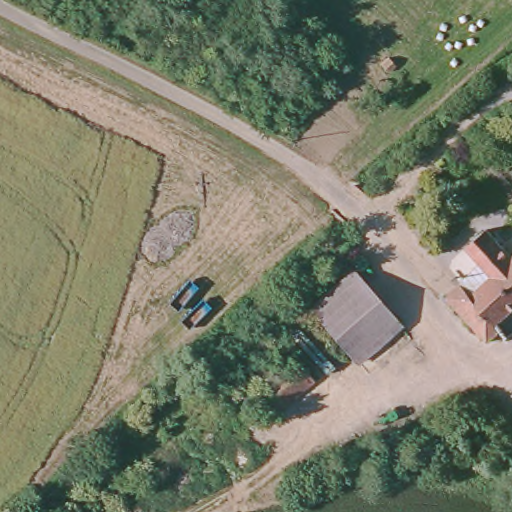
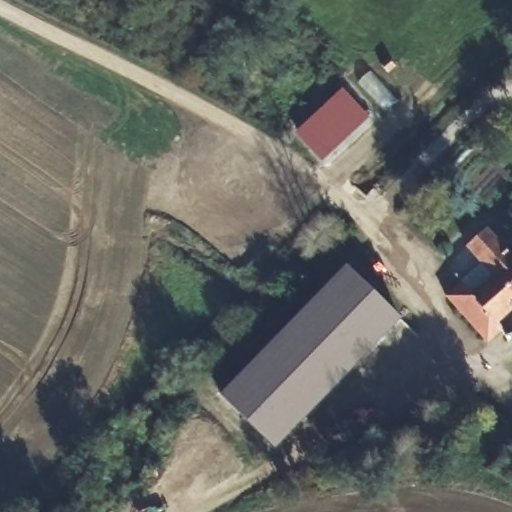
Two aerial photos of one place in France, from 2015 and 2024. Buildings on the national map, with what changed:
new [(342,88),(370,118),(322,162),(295,133),(342,88)]
unchanged [(497,233),(512,250),(512,317),(506,322),(512,330),(498,342),(497,341),(456,297),(470,284),(491,265),(481,255),(477,251),(497,233)]
demolished [(325,244),(400,328),(358,364),(283,277),(325,244)]
new [(397,322),(274,451),(216,400),(346,270),(397,322)]
unchanged [(512,352),(512,353),(511,352),(512,352)]

